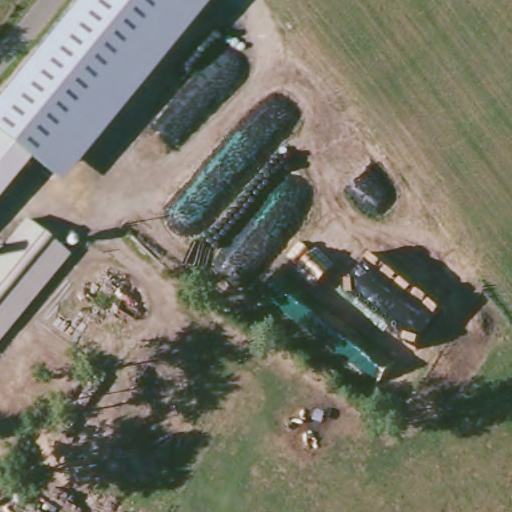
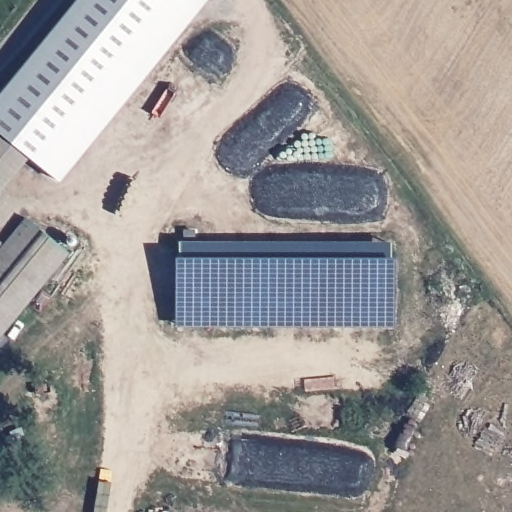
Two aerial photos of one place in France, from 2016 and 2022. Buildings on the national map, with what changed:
unchanged [(60,184),(32,160),(3,194),(0,193),(0,96),(78,0),(210,0),(60,184)]
unchanged [(0,337),(0,258),(33,218),(71,252),(0,337)]
new [(390,258),(394,258),(393,324),(176,323),(176,258),(181,258),(179,244),(391,242),(390,258)]

